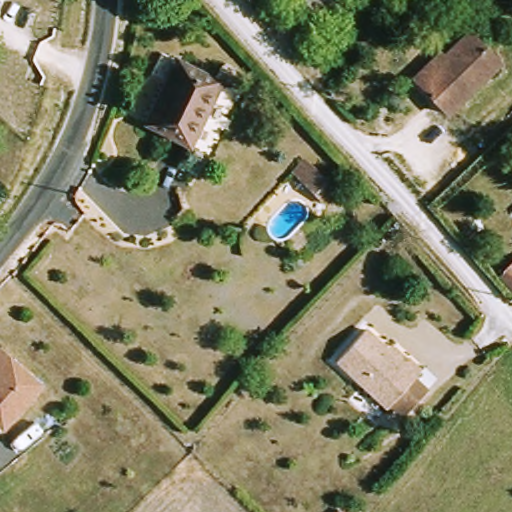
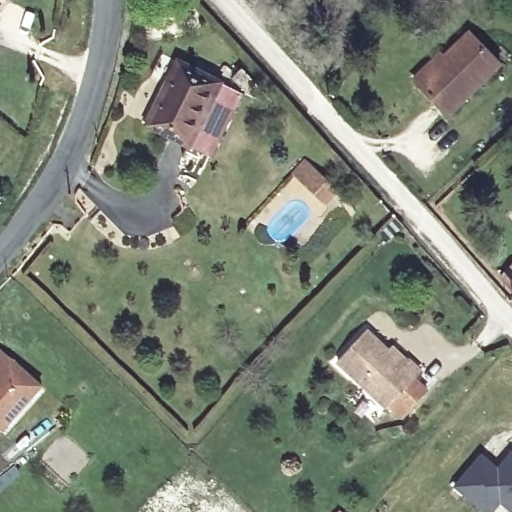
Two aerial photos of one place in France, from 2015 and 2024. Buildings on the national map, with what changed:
unchanged [(503,65),(454,119),(424,93),(415,86),(440,59),(445,62),(469,34),(503,65)]
unchanged [(194,150),(153,137),(176,66),(217,79),(194,150)]
unchanged [(323,218),(313,208),(288,188),(301,174),(324,195),(334,204),(323,218)]
unchanged [(502,282),(512,270),(512,290),(502,282)]
unchanged [(408,413),(395,401),(388,408),(335,365),(362,334),(384,350),(391,343),(407,356),(421,368),(419,370),(434,382),(428,390),(408,413)]
unchanged [(0,434),(0,366),(7,358),(18,369),(45,397),(5,439),(0,434)]
new [(501,502),(492,512),(485,512),(454,484),(482,453),(499,467),(512,453),(512,512),(501,502)]

